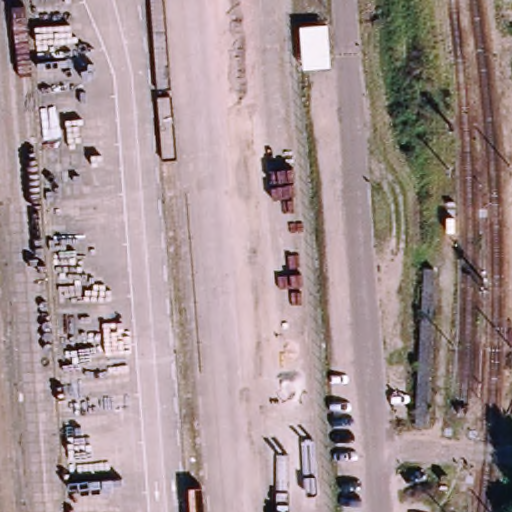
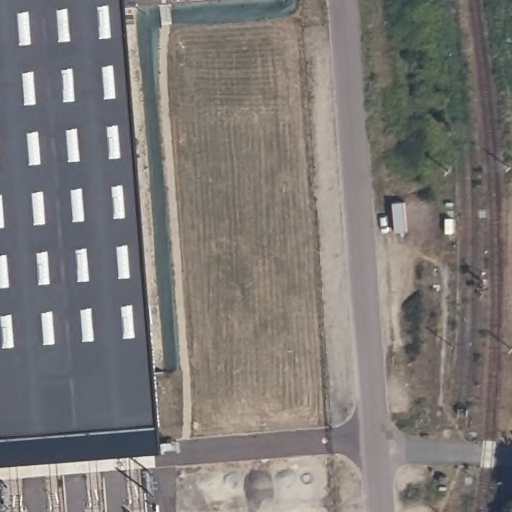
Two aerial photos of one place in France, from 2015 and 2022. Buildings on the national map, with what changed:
new [(155,447),(0,460),(0,0),(118,0),(155,447)]
demolished [(327,26),(330,68),(304,70),(300,27),(327,26)]

